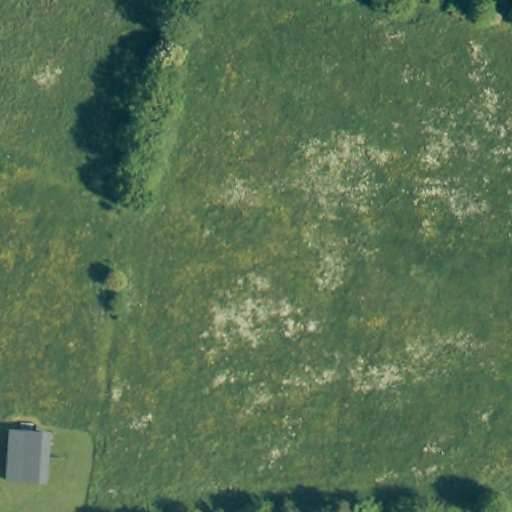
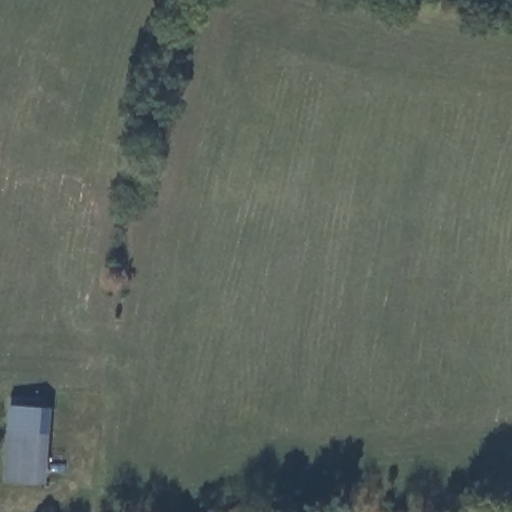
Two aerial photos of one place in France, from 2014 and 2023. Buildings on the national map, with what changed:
unchanged [(44,435),(40,484),(8,482),(11,431),(44,435)]

